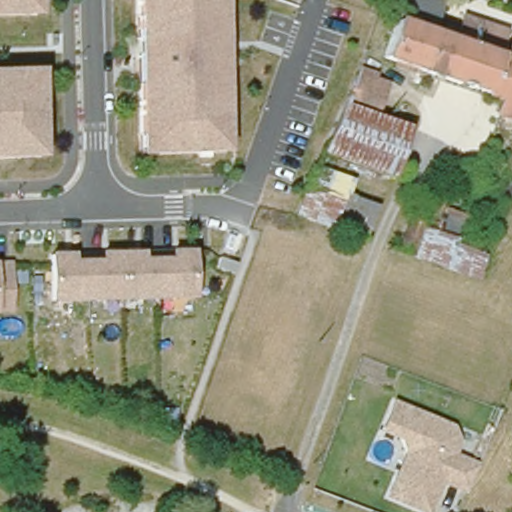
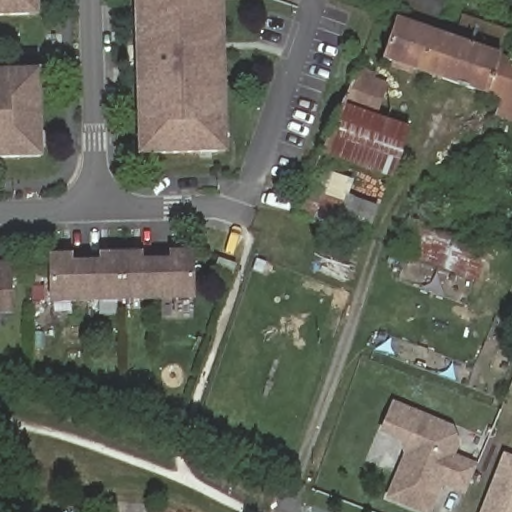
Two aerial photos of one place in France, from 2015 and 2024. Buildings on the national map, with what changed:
unchanged [(0,16),(0,0),(40,0),(41,15),(0,16)]
unchanged [(230,154),(139,155),(134,0),(226,0),(230,154)]
unchanged [(504,58),(490,97),(383,60),(403,0),(443,0),(434,30),(454,38),(462,15),(512,32),(512,35),(504,58)]
unchanged [(503,102),(490,97),(504,58),(512,60),(512,117),(499,113),(503,102)]
unchanged [(0,158),(0,70),(43,68),(44,157),(0,158)]
unchanged [(378,89),(372,104),(347,96),(348,94),(354,80),(378,89)]
unchanged [(324,153),(343,105),(409,127),(391,175),(324,153)]
unchanged [(312,174),(379,198),(361,248),(293,222),(312,174)]
unchanged [(469,220),(458,244),(456,251),(457,252),(489,265),(482,283),(411,259),(424,229),(441,236),(452,213),(469,220)]
unchanged [(199,297),(49,303),(49,253),(196,248),(199,297)]
unchanged [(0,313),(0,260),(10,260),(11,312),(0,313)]
unchanged [(458,453),(479,463),(467,494),(443,485),(430,512),(422,512),(389,497),(405,458),(399,442),(381,432),(395,399),(455,424),(463,442),(458,453)]
new [(482,512),(504,453),(512,456),(512,512),(482,512)]

